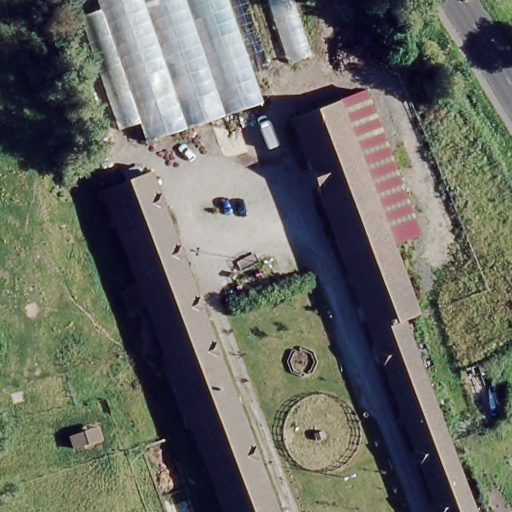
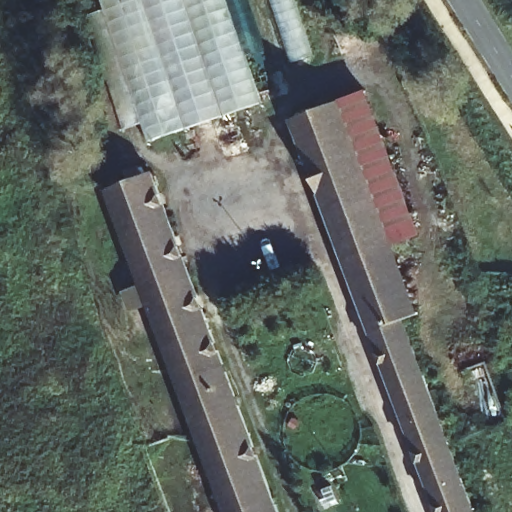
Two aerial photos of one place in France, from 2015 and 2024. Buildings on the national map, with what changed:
unchanged [(152,136),(104,0),(233,0),(267,96),(152,136)]
unchanged [(417,240),(396,247),(420,310),(404,315),(372,330),(292,117),(362,96),(417,240)]
unchanged [(152,171),(284,512),(228,512),(165,351),(102,190),(152,171)]
unchanged [(479,512),(442,512),(372,330),(404,315),(479,512)]

